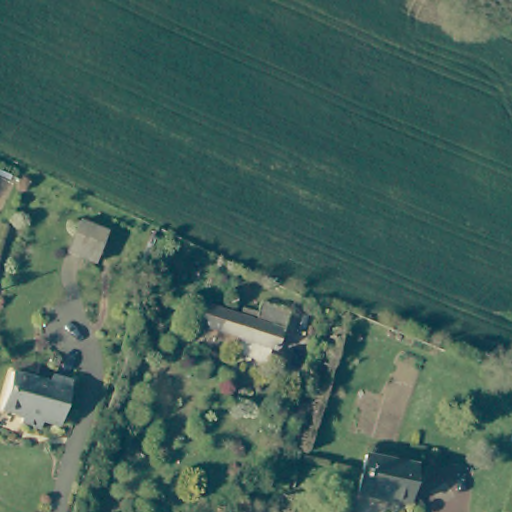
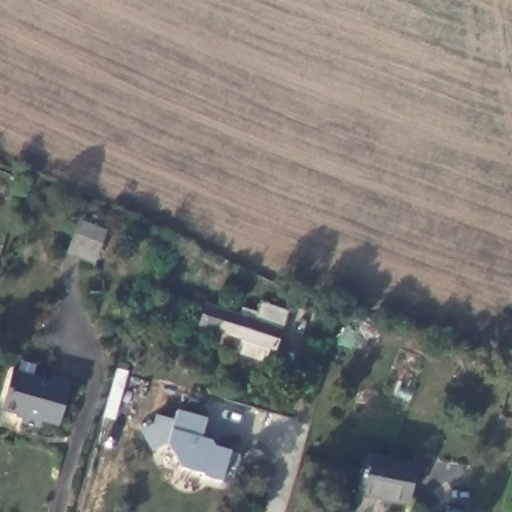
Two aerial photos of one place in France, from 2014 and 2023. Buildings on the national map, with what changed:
unchanged [(200,327),(209,303),(242,311),(255,291),(296,308),(282,347),(200,327)]
unchanged [(20,372),(55,383),(59,375),(77,382),(62,428),(47,422),(45,430),(26,425),(28,416),(8,409),(20,372)]
new [(154,423),(156,415),(174,421),(177,410),(208,417),(202,437),(215,440),(214,445),(231,450),(222,483),(203,478),(205,473),(182,467),(166,443),(152,453),(139,430),(154,423)]
unchanged [(373,450),(422,461),(415,499),(366,490),(373,450)]

